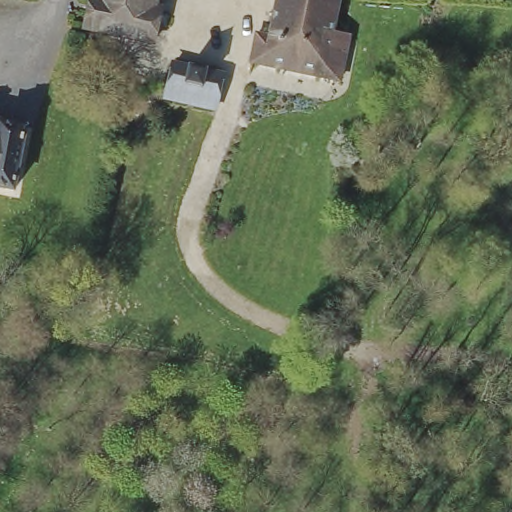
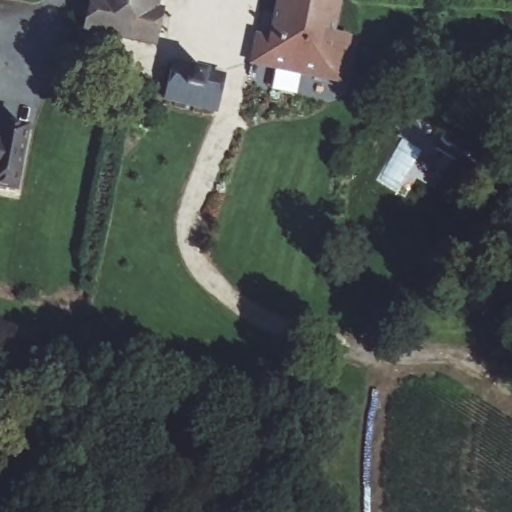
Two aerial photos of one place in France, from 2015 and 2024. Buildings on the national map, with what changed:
unchanged [(91,0),(156,0),(153,12),(158,14),(151,47),(83,31),(91,0)]
unchanged [(320,80),(250,64),(257,33),(269,35),(276,0),(351,0),(349,8),(335,5),(328,39),(345,42),(336,84),(320,80)]
unchanged [(168,91),(173,68),(225,79),(219,103),(216,116),(165,104),(168,91)]
unchanged [(16,191),(0,189),(0,121),(27,126),(16,191)]

